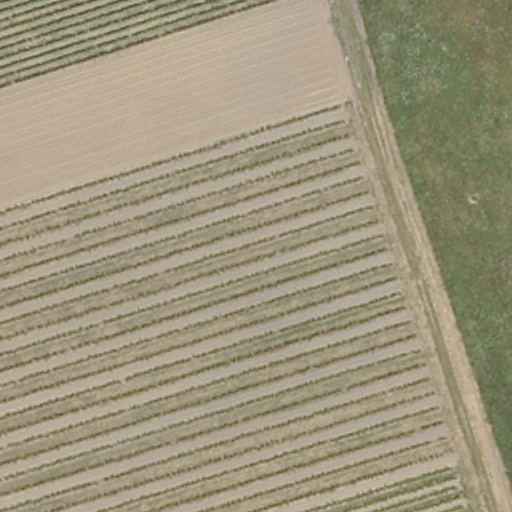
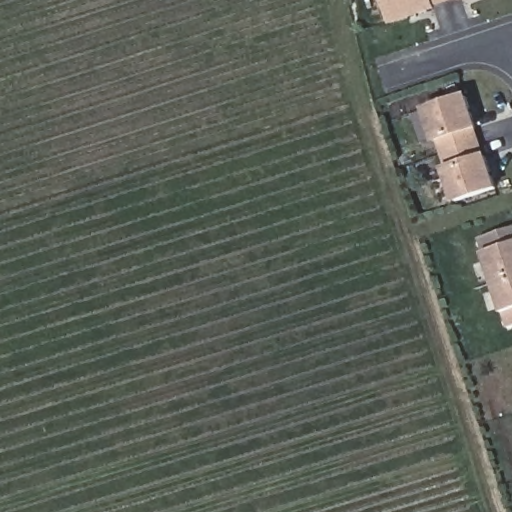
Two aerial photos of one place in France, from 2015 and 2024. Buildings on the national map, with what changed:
new [(437,10),(388,26),(381,0),(455,0),(436,6),(437,10)]
new [(467,0),(461,2),(461,0),(467,0)]
new [(488,155),(498,190),(455,205),(443,169),(435,144),(423,109),(468,94),(481,129),(488,155)]
new [(508,329),(504,314),(486,253),(481,238),(512,227),(512,327),(508,329)]

